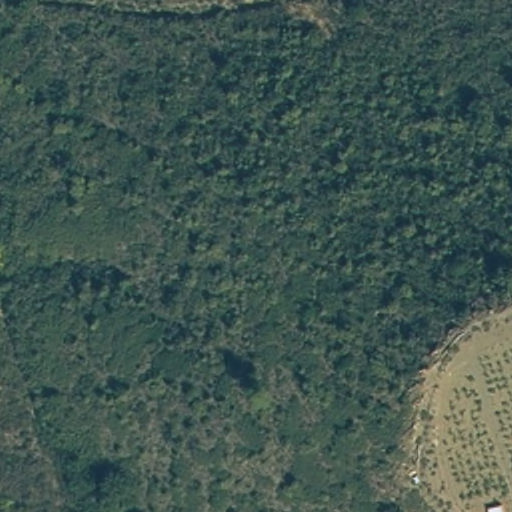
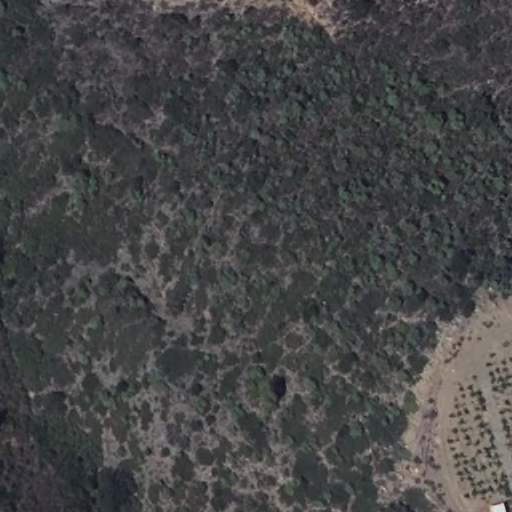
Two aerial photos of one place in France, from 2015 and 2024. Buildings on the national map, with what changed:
unchanged [(503,496),(509,512),(492,512),(487,500),(503,496)]

